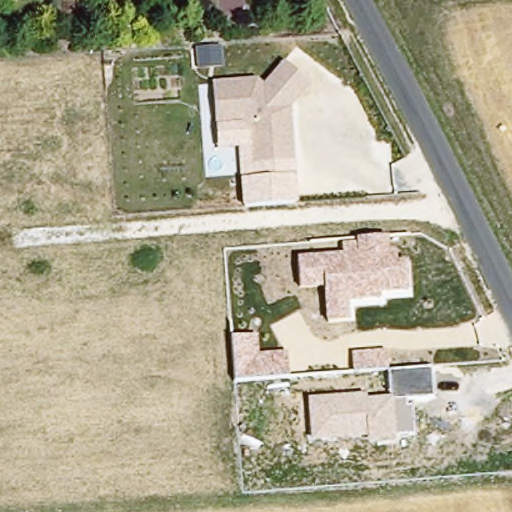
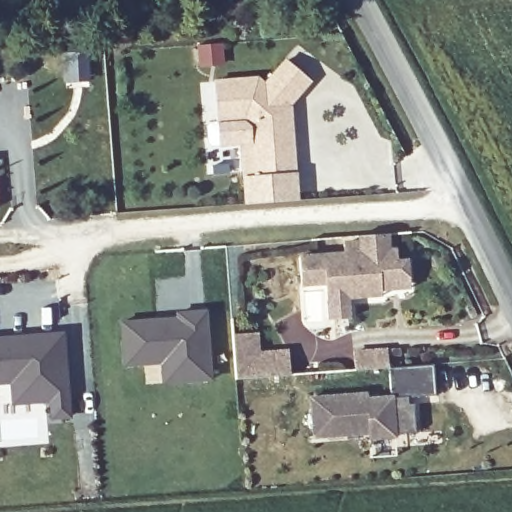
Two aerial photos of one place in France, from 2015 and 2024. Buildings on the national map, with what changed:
unchanged [(247,129),(241,122),(216,125),(212,79),(255,74),(264,80),(284,58),(311,81),(291,104),(296,159),(250,164),(247,129)]
unchanged [(299,199),(242,204),(239,147),(217,149),(216,125),(241,122),(247,129),(250,164),(296,159),(299,199)]
unchanged [(342,255),(342,245),(358,243),(358,235),(385,233),(386,251),(396,249),(396,261),(407,260),(408,276),(395,278),(390,291),(378,292),(378,283),(365,285),(366,298),(348,299),(348,319),(328,320),(325,282),(300,284),(299,258),(342,255)]
new [(174,315),(174,311),(207,309),(213,381),(160,385),(158,365),(121,367),(119,320),(174,315)]
new [(72,420),(48,422),(46,405),(10,407),(7,385),(0,386),(0,335),(65,331),(72,420)]
unchanged [(258,333),(260,353),(289,349),(291,374),(235,380),(232,335),(258,333)]
unchanged [(366,391),(366,398),(390,396),(389,367),(433,363),(435,395),(414,397),(415,433),(311,441),(310,395),(366,391)]

